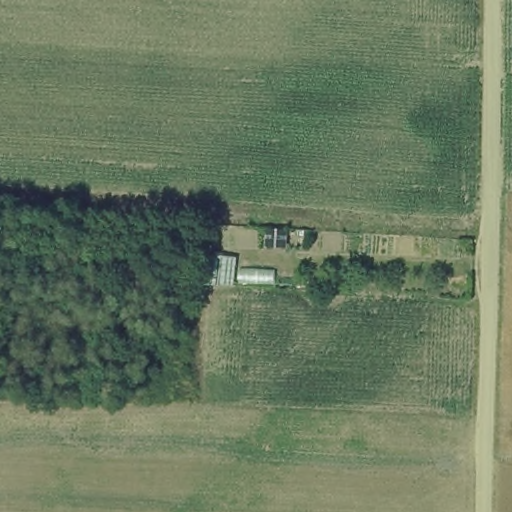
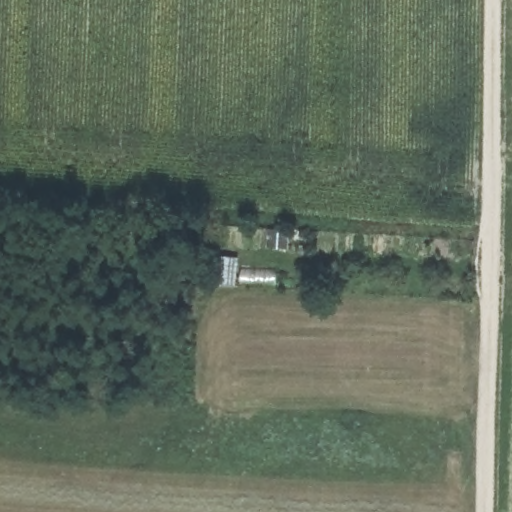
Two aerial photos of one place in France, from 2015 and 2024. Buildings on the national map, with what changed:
unchanged [(251,287),(216,287),(217,269),(252,271),(251,287)]

